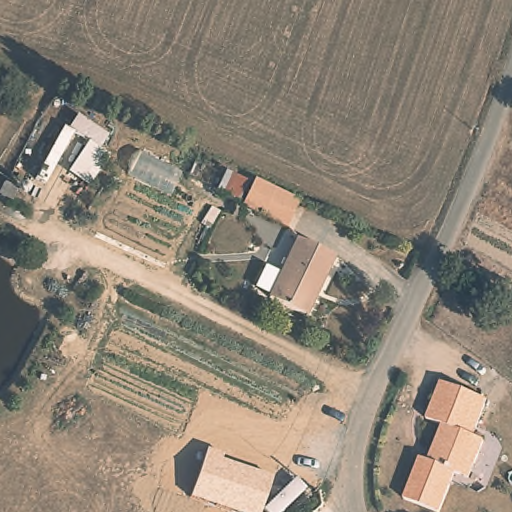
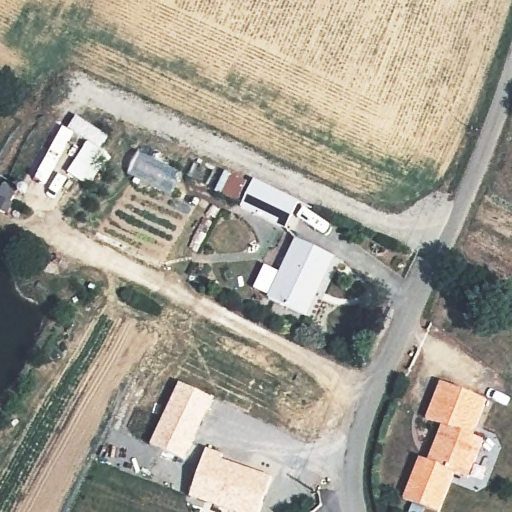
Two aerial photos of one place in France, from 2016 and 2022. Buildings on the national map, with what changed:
unchanged [(240,203),(229,197),(218,192),(229,172),(239,177),(252,184),(240,203)]
unchanged [(246,207),(258,182),(305,204),(290,229),(246,207)]
unchanged [(267,296),(297,241),(333,257),(306,316),(267,296)]
unchanged [(446,421),(430,415),(445,378),(491,397),(476,432),(487,437),(471,475),(458,469),(441,508),(406,494),(423,453),(431,457),(435,447),(446,421)]
new [(178,382),(214,399),(185,462),(150,445),(178,382)]
unchanged [(206,449),(225,455),(222,460),(272,478),(260,512),(228,512),(189,500),(206,449)]

